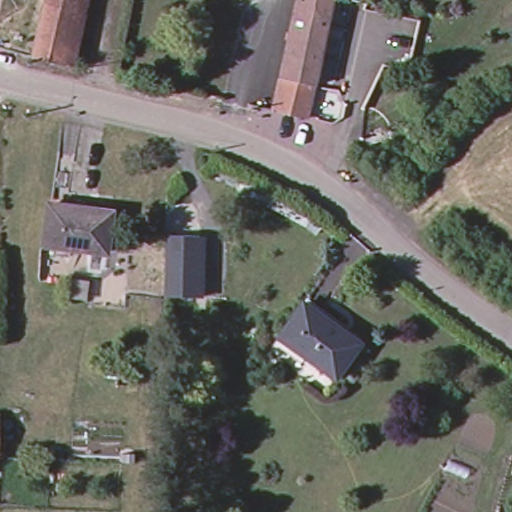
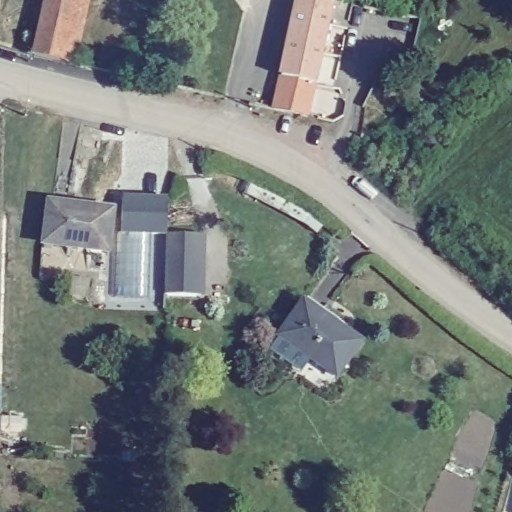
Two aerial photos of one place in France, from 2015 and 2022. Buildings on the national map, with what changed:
unchanged [(27,51),(38,0),(81,0),(68,60),(27,51)]
unchanged [(330,0),(305,118),(272,110),(295,0),(330,0)]
new [(121,234),(121,196),(166,198),(165,235),(121,234)]
unchanged [(113,209),(109,248),(46,241),(50,201),(113,209)]
unchanged [(165,296),(165,237),(206,239),(205,298),(165,296)]
unchanged [(355,345),(331,378),(276,339),(300,305),(355,345)]

